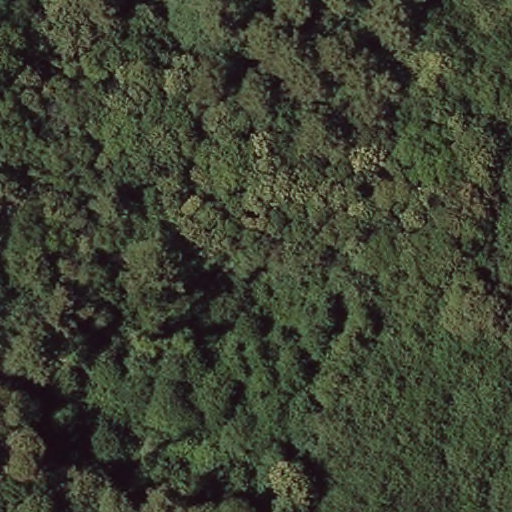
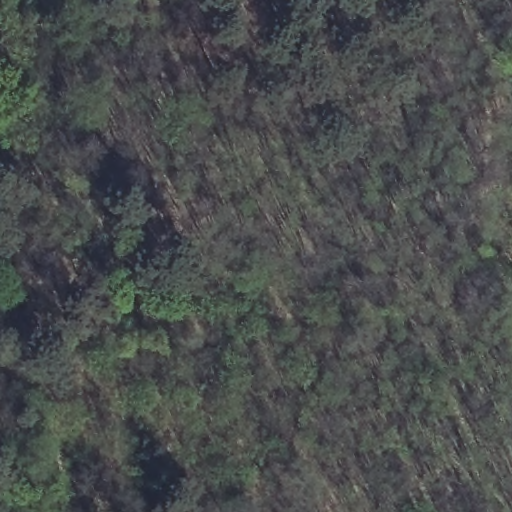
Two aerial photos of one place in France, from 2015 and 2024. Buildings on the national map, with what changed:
[]

